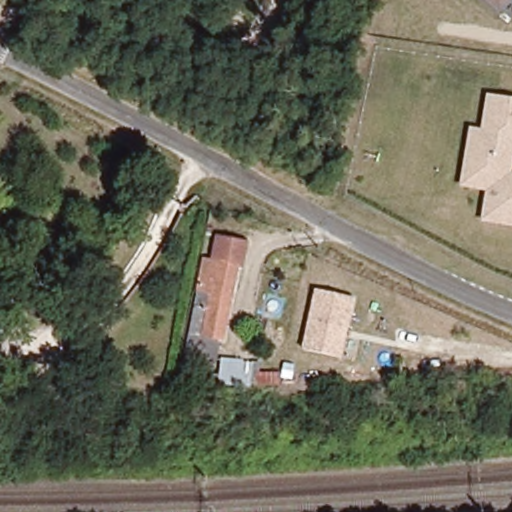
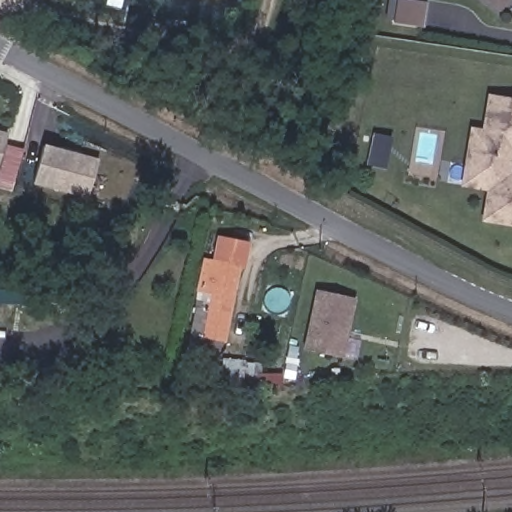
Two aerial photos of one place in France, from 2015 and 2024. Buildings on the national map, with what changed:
unchanged [(491,0),(512,0),(512,1),(503,10),(491,0)]
unchanged [(488,93),(512,97),(512,228),(481,222),(486,190),(461,186),(470,126),(482,127),(488,93)]
new [(0,164),(0,131),(9,133),(0,164)]
new [(87,197),(35,183),(44,146),(97,161),(87,197)]
unchanged [(195,313),(198,314),(207,260),(211,260),(216,233),(248,239),(244,265),(238,264),(227,337),(211,336),(208,355),(187,351),(191,332),(195,313)]
unchanged [(342,356),(302,347),(316,290),(355,299),(342,356)]
unchanged [(202,374),(224,375),(227,359),(259,362),(258,372),(279,371),(282,386),(253,388),(204,386),(202,374)]

